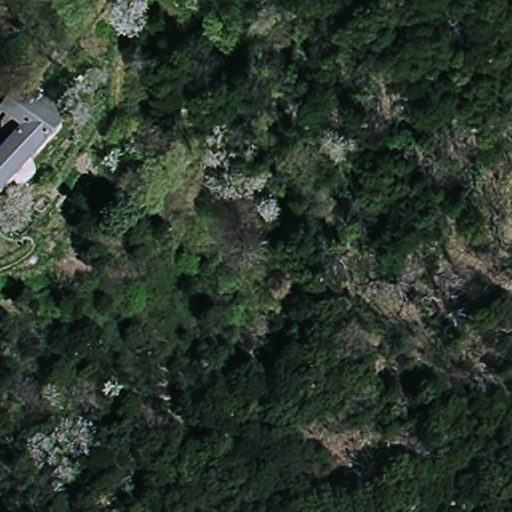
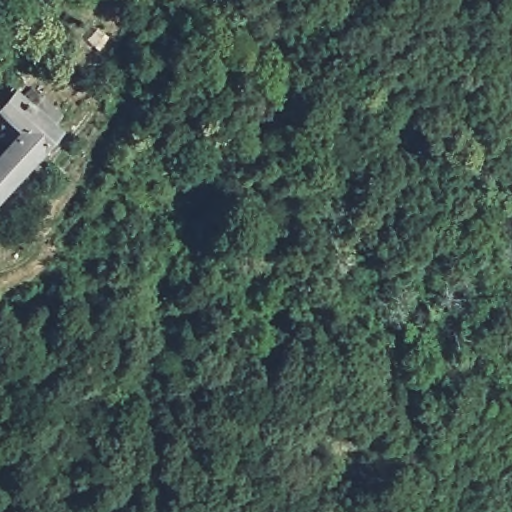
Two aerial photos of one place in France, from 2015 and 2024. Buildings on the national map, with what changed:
unchanged [(0,35),(9,43),(0,52),(0,35)]
unchanged [(0,196),(0,149),(21,126),(0,109),(0,105),(17,85),(62,123),(0,196)]

